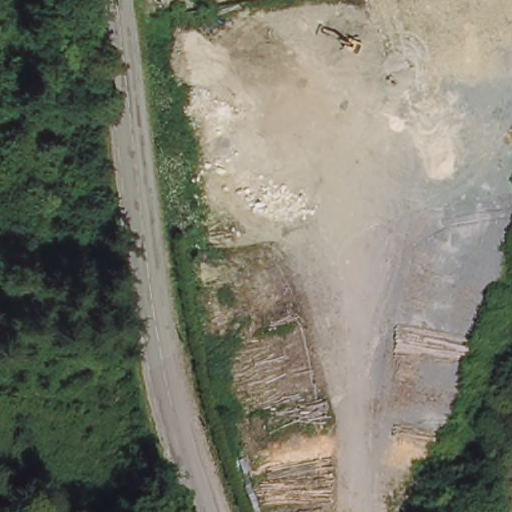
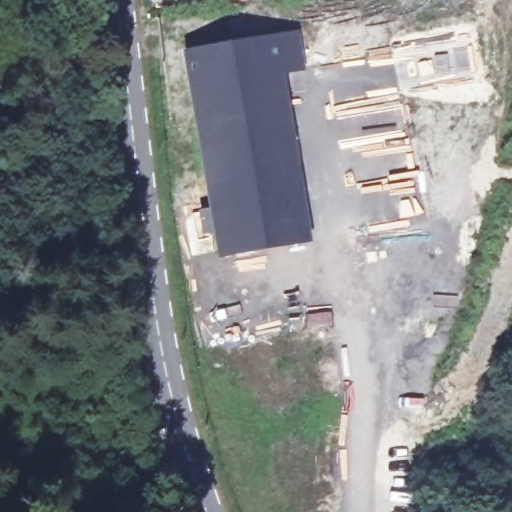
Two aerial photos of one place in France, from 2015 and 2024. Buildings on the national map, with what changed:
new [(182,53),(297,31),(305,71),(283,73),(312,242),(217,258),(182,53)]

